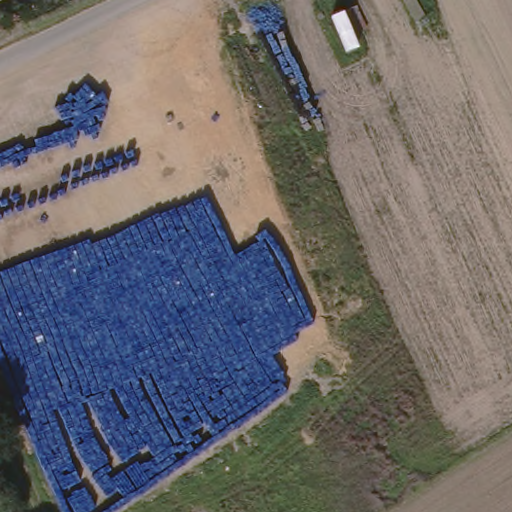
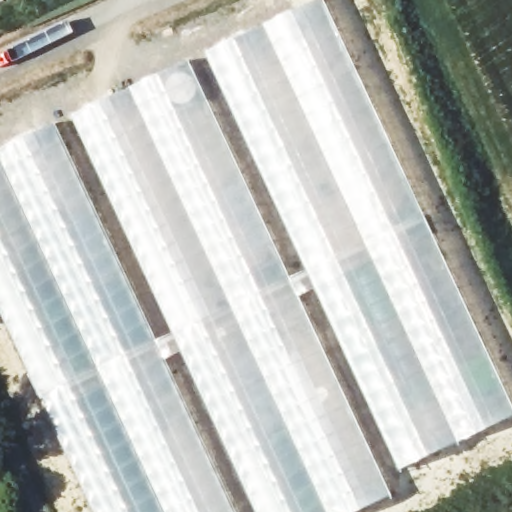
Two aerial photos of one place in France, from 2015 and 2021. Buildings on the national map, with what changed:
new [(317,0),(320,0),(509,407),(395,460),(206,52),(317,0)]
new [(386,493),(346,512),(257,512),(73,115),(187,62),(386,493)]
new [(234,512),(96,512),(0,304),(0,150),(56,125),(234,512)]

